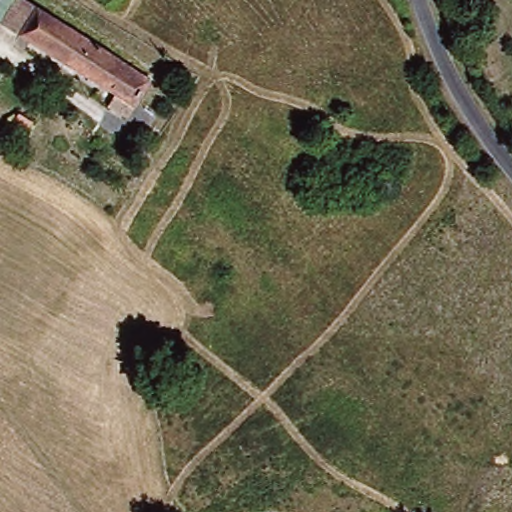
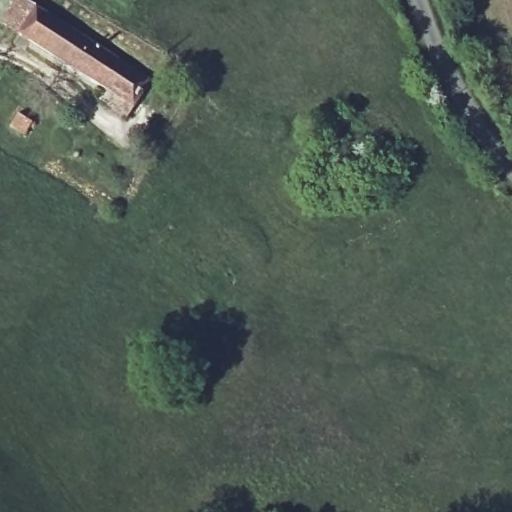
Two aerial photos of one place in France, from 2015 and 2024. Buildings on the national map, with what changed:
unchanged [(86,37),(151,79),(135,103),(9,21),(21,0),(27,0),(86,37)]
unchanged [(39,115),(56,126),(47,140),(30,129),(39,115)]

